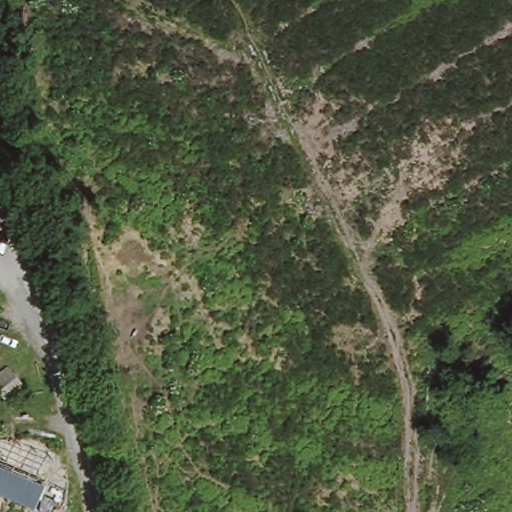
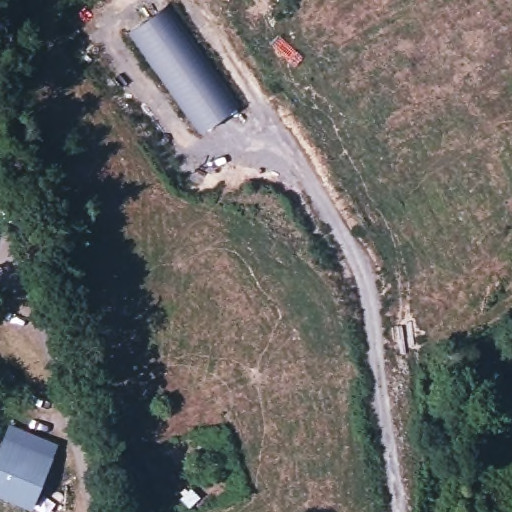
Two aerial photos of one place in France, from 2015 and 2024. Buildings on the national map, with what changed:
new [(168,2),(242,107),(199,137),(126,32),(168,2)]
unchanged [(50,512),(19,512),(8,507),(10,495),(0,487),(0,429),(8,428),(10,437),(32,433),(57,445),(62,467),(73,470),(72,512),(57,512),(50,511),(50,512)]

